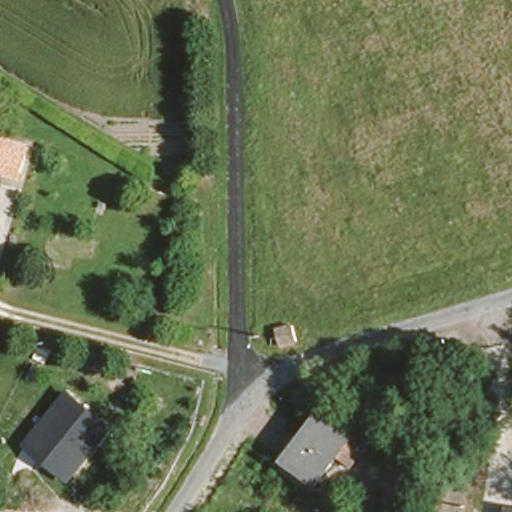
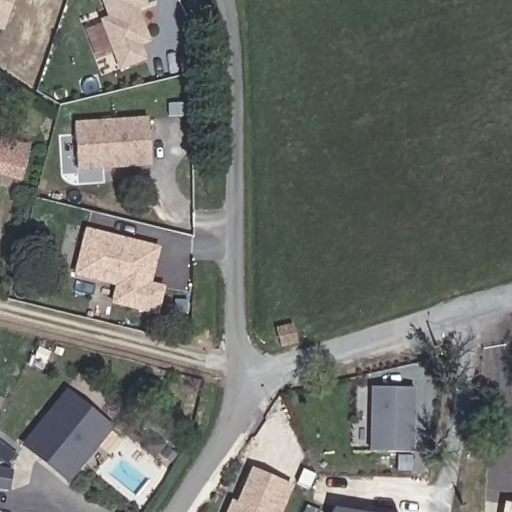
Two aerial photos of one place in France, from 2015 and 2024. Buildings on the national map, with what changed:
new [(4,25),(0,23),(0,0),(12,0),(4,25)]
new [(146,5),(136,9),(149,42),(140,46),(146,60),(121,69),(102,21),(110,17),(103,0),(144,0),(146,5)]
new [(149,117),(151,166),(79,169),(74,122),(149,117)]
unchanged [(0,162),(0,126),(30,136),(29,142),(21,168),(0,162)]
new [(158,249),(149,286),(165,290),(157,315),(114,304),(118,283),(75,273),(86,231),(158,249)]
unchanged [(280,349),(275,329),(293,324),(298,342),(280,349)]
new [(415,389),(411,452),(370,450),(372,387),(415,389)]
unchanged [(71,485),(22,444),(67,390),(115,430),(71,485)]
demolished [(322,405),(339,419),(346,411),(371,431),(347,460),(336,452),(312,481),(281,457),(322,405)]
new [(236,502),(250,468),(293,487),(282,512),(226,512),(231,500),(236,502)]
unchanged [(512,502),(512,512),(504,512),(506,501),(512,502)]
new [(349,512),(333,512),(333,509),(349,512)]

